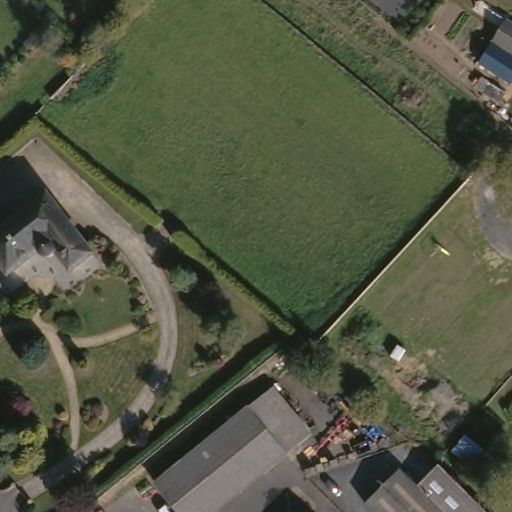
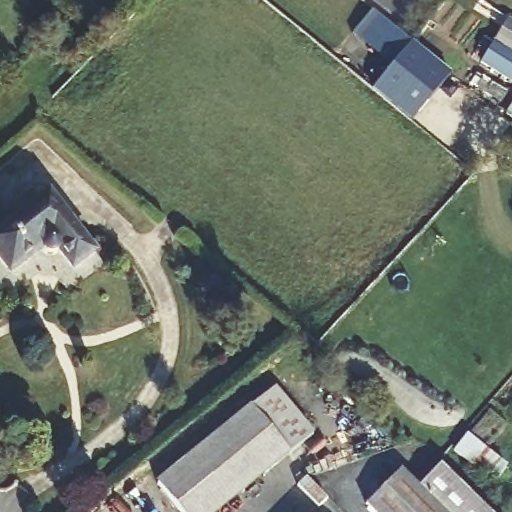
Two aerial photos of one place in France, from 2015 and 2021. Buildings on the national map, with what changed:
unchanged [(487,52),(494,41),(509,19),(512,21),(512,69),(503,63),(510,52),(502,46),(494,57),(487,52)]
new [(412,41),(452,74),(413,121),(373,89),(412,41)]
unchanged [(58,249),(58,250),(57,252),(56,253),(55,254),(54,254),(53,255),(51,255),(50,255),(49,255),(47,254),(46,254),(45,253),(44,252),(44,249),(11,274),(0,259),(0,229),(51,191),(97,253),(74,270),(58,249)]
unchanged [(315,433),(221,512),(183,512),(163,489),(279,391),(315,433)]
unchanged [(376,503),(412,467),(429,484),(451,462),(501,512),(385,512),(376,503)]

